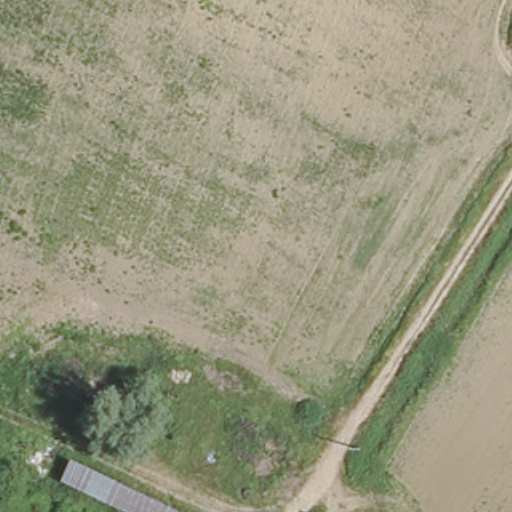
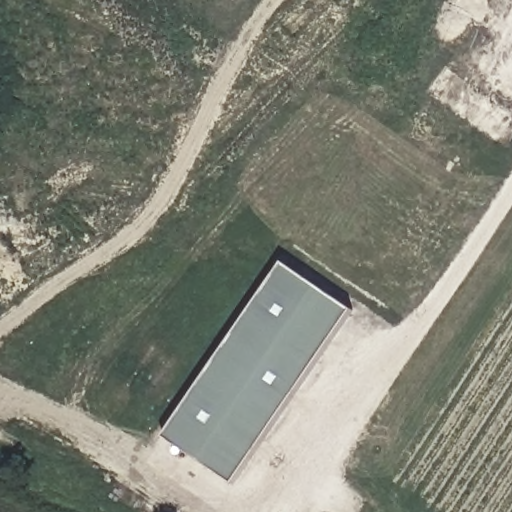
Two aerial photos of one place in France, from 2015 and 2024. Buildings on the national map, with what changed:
new [(277,266),(348,312),(234,490),(162,444),(277,266)]
demolished [(317,507),(325,512),(315,512),(317,507)]

